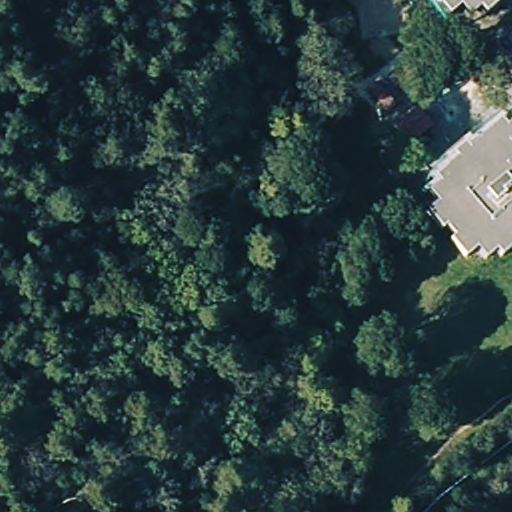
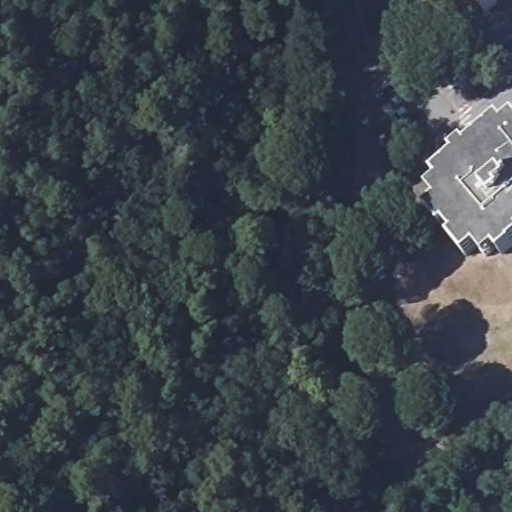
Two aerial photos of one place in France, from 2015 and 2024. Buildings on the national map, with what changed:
unchanged [(444,0),(506,0),(490,13),(485,6),(473,16),(464,5),(454,14),(444,0)]
unchanged [(456,239),(460,236),(451,224),(446,229),(432,210),(441,203),(432,192),(444,182),(440,175),(462,156),(459,153),(470,144),(473,147),(505,119),(510,125),(512,124),(512,250),(505,256),(500,250),(488,260),(479,249),(471,257),(456,239)]

